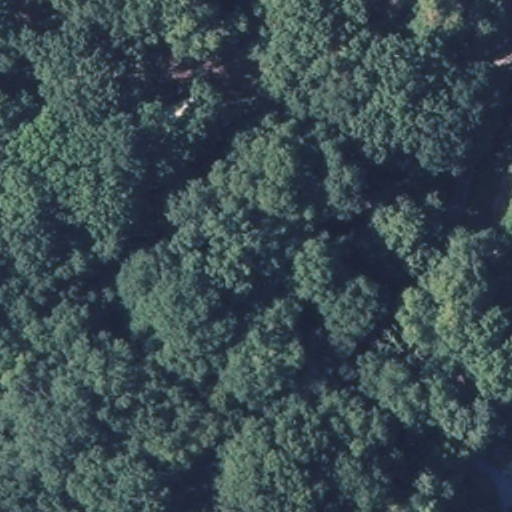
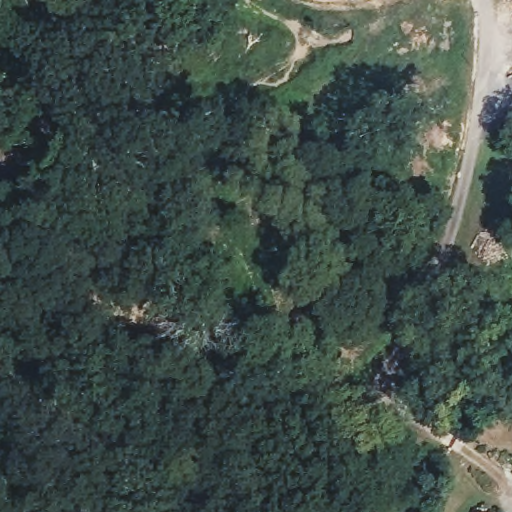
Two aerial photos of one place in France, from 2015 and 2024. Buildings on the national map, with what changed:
unchanged [(512,25),(505,0),(512,0),(512,25)]

